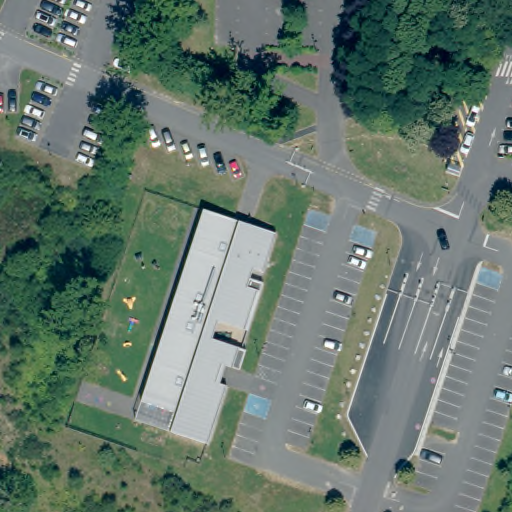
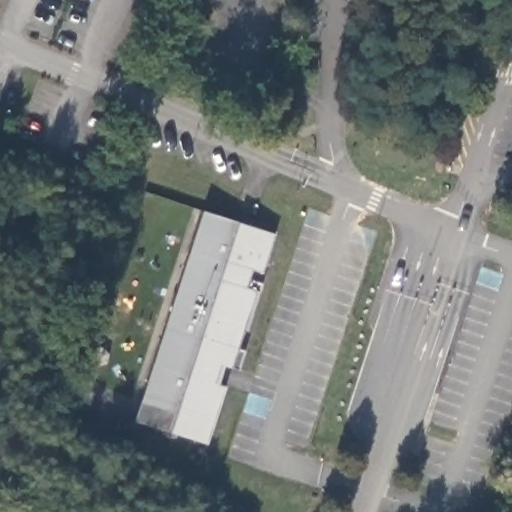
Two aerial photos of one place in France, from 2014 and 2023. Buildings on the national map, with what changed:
unchanged [(276,232),(263,272),(252,269),(249,277),(253,278),(263,282),(248,330),(217,320),(211,338),(246,349),(240,369),(222,363),(216,381),(228,385),(215,425),(141,401),(202,209),(276,232)]
unchanged [(208,445),(134,422),(141,401),(215,425),(208,445)]

